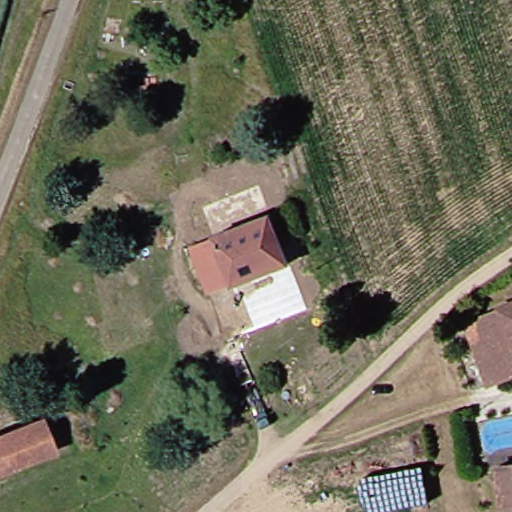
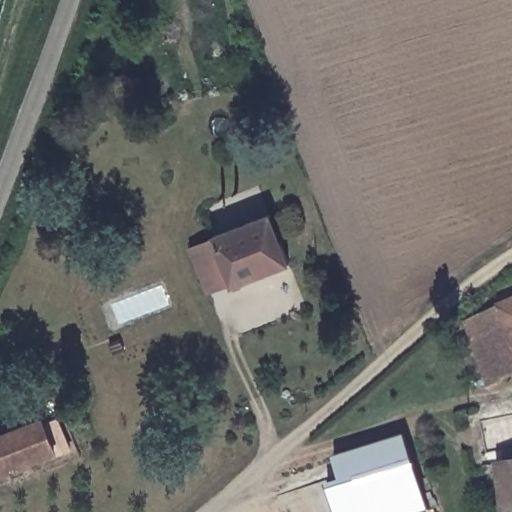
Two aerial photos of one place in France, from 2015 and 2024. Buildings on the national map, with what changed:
unchanged [(234,282),(218,235),(274,212),(291,262),(234,282)]
unchanged [(204,294),(188,247),(218,235),(234,282),(204,294)]
unchanged [(512,375),(494,382),(467,317),(512,302),(512,375)]
unchanged [(59,452),(0,476),(0,439),(48,421),(59,452)]
new [(338,461),(405,440),(423,497),(376,512),(334,512),(327,491),(341,486),(334,462),(338,461)]
unchanged [(512,462),(512,487),(510,462),(512,462)]
new [(428,512),(376,512),(423,497),(428,512)]

